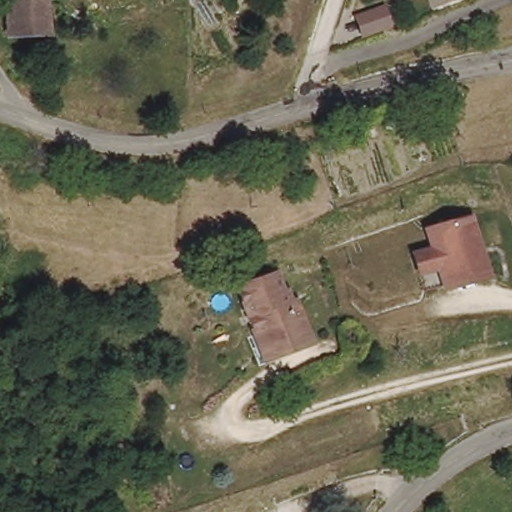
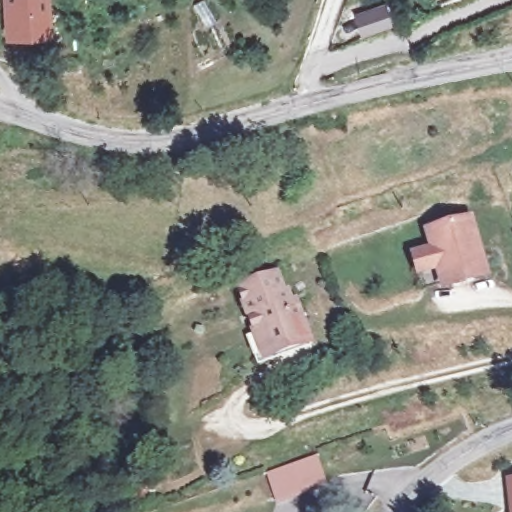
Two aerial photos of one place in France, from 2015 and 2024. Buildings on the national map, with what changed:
unchanged [(7,37),(3,3),(0,3),(0,0),(41,0),(45,33),(7,37)]
unchanged [(415,272),(432,268),(428,248),(468,237),(482,294),(442,304),(437,286),(418,291),(415,272)]
unchanged [(265,332),(248,288),(287,273),(300,304),(305,302),(318,340),(282,354),(274,357),(265,332)]
new [(265,473),(317,455),(327,487),(275,503),(265,473)]

